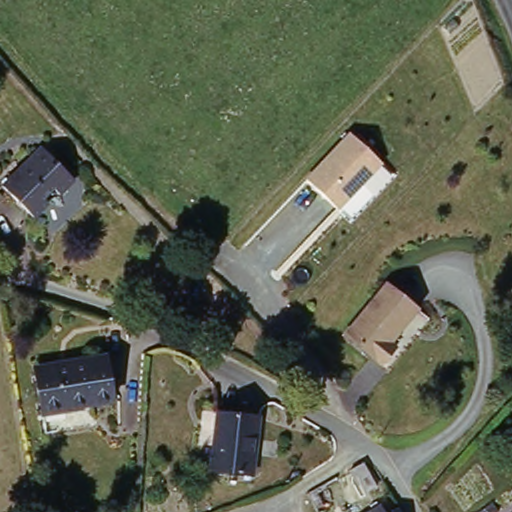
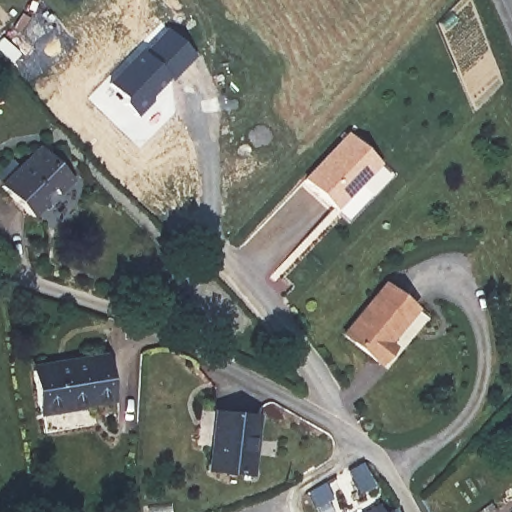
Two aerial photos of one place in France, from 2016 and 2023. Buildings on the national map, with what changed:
new [(144,50),(147,52),(170,29),(197,56),(173,80),(170,77),(154,95),(154,100),(138,116),(125,103),(125,98),(111,84),(144,50)]
unchanged [(378,162),(340,202),(308,175),(349,132),(378,162)]
unchanged [(63,195),(58,191),(50,199),(54,202),(39,216),(8,187),(42,152),(48,147),(59,160),(78,180),(63,195)]
unchanged [(390,287),(420,313),(392,347),(397,352),(383,368),(347,337),(390,287)]
unchanged [(67,374),(66,372),(104,364),(112,406),(69,415),(69,418),(43,423),(34,381),(67,374)]
unchanged [(261,420),(253,467),(213,463),(220,413),(261,420)]
unchanged [(372,482),(362,488),(350,468),(360,462),(372,482)]

